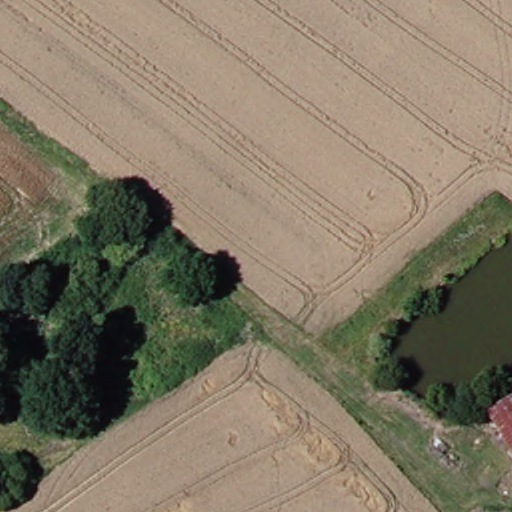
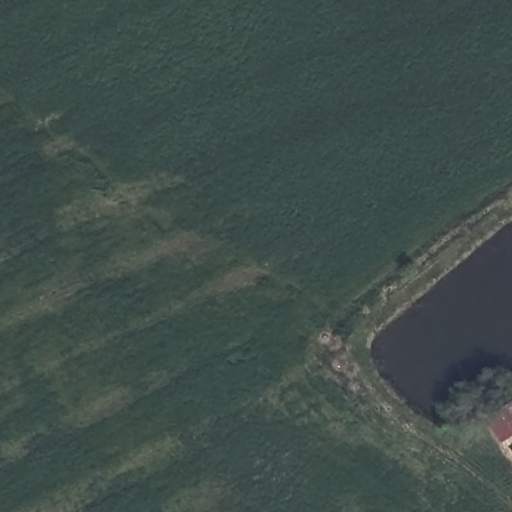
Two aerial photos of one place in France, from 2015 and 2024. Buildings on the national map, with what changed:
unchanged [(490,415),(512,401),(512,449),(490,415)]

